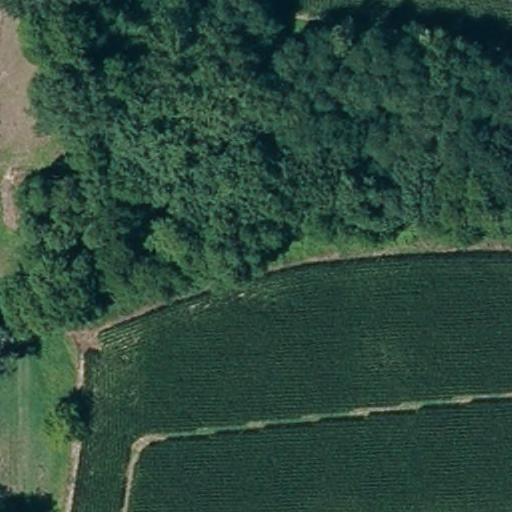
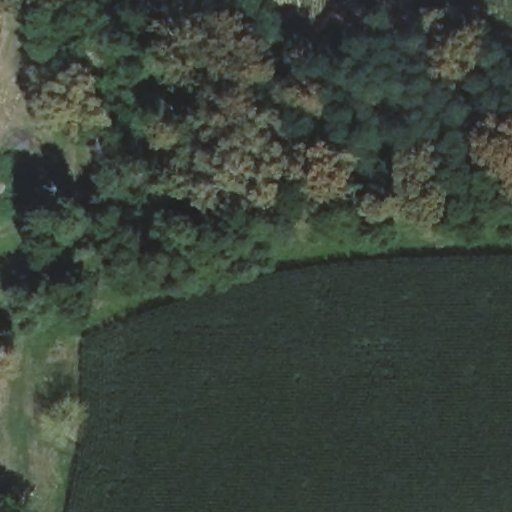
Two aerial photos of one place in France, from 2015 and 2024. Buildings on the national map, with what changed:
[]

